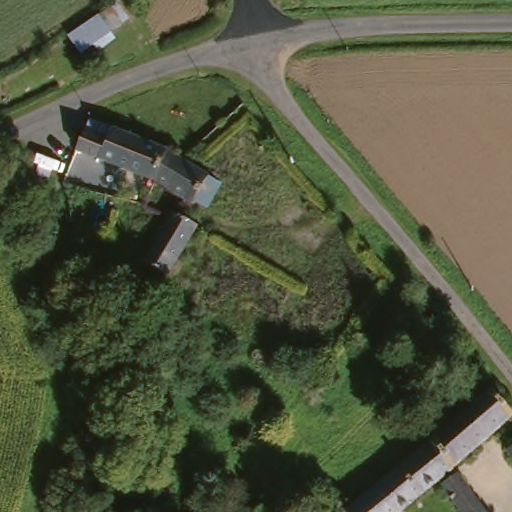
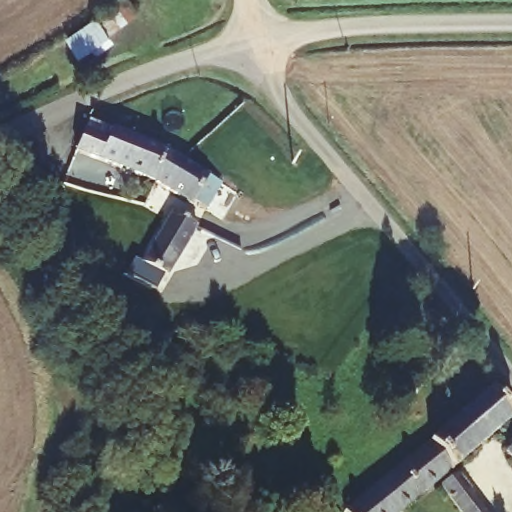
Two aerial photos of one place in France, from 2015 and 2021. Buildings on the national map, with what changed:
unchanged [(81,57),(69,39),(118,0),(129,0),(138,16),(81,57)]
unchanged [(155,187),(77,156),(91,127),(170,157),(155,187)]
unchanged [(223,189),(209,212),(195,205),(192,208),(155,187),(170,157),(189,165),(223,189)]
unchanged [(162,277),(138,263),(168,216),(192,228),(162,277)]
unchanged [(396,512),(341,512),(340,511),(487,391),(490,394),(509,417),(396,512)]
unchanged [(512,456),(512,465),(508,460),(512,456)]
unchanged [(439,490),(458,477),(481,512),(454,512),(439,490)]

